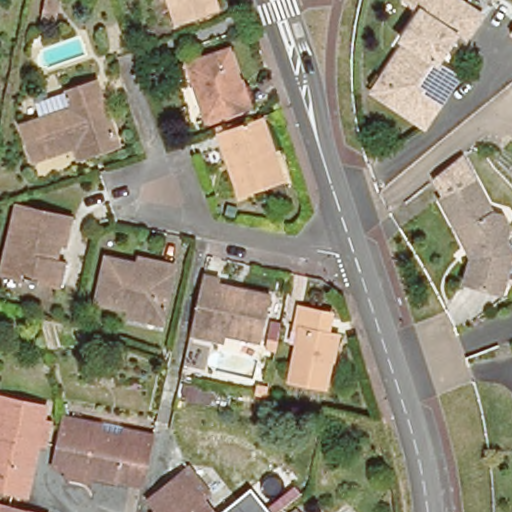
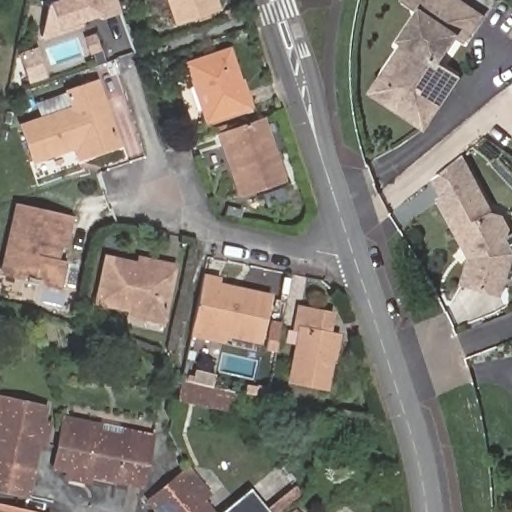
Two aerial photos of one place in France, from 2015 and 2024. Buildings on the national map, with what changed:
demolished [(35,11),(37,0),(51,0),(47,15),(35,11)]
new [(120,12),(100,20),(99,16),(82,21),(84,26),(42,40),(40,35),(45,5),(47,4),(46,2),(52,0),(116,0),(120,12)]
unchanged [(208,15),(169,28),(159,0),(203,0),(208,15)]
unchanged [(483,17),(466,42),(458,37),(439,65),(450,72),(423,111),(395,94),(398,90),(384,80),(407,45),(403,42),(422,12),(405,1),(406,0),(457,0),(483,17)]
unchanged [(225,50),(243,105),(200,118),(182,64),(225,50)]
unchanged [(70,149),(33,161),(22,126),(16,110),(66,93),(94,83),(116,146),(81,157),(74,160),(70,149)]
unchanged [(216,140),(213,128),(259,112),(279,175),(238,189),(232,190),(216,140)]
unchanged [(497,222),(507,221),(512,231),(512,237),(507,242),(512,251),(512,267),(505,298),(464,288),(471,256),(446,206),(480,190),(497,222)]
unchanged [(56,283),(46,281),(0,270),(0,253),(11,202),(66,216),(61,241),(54,240),(51,257),(61,260),(56,283)]
unchanged [(118,310),(119,305),(88,297),(98,252),(128,258),(129,254),(149,258),(166,262),(155,313),(154,319),(118,310)]
unchanged [(182,332),(183,325),(194,275),(212,280),(210,285),(262,297),(252,342),(218,334),(216,341),(182,332)]
unchanged [(321,382),(284,374),(294,323),(288,322),(292,302),(327,310),(323,330),(331,331),(321,382)]
new [(182,381),(213,388),(211,405),(178,399),(182,381)]
unchanged [(38,425),(47,426),(44,446),(34,443),(23,497),(0,492),(0,398),(2,398),(42,407),(38,425)]
unchanged [(65,475),(67,466),(61,465),(54,463),(50,462),(54,443),(59,420),(60,412),(148,432),(146,440),(144,453),(142,457),(137,481),(116,477),(110,476),(92,471),(85,470),(83,478),(75,476),(65,475)]
unchanged [(159,508),(151,498),(184,472),(190,468),(224,512),(159,512),(161,511),(159,508)]
unchanged [(2,503),(20,507),(41,512),(0,512),(0,503),(2,503)]
unchanged [(290,512),(292,510),(293,512),(290,512)]

